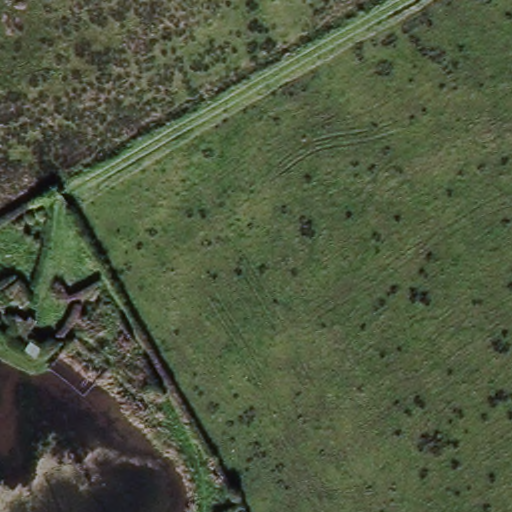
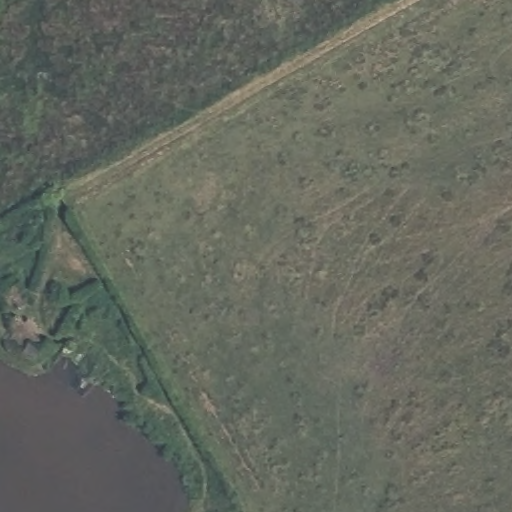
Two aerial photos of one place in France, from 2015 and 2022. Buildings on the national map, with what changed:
unchanged [(25,296),(0,310),(0,283),(12,277),(25,296)]

